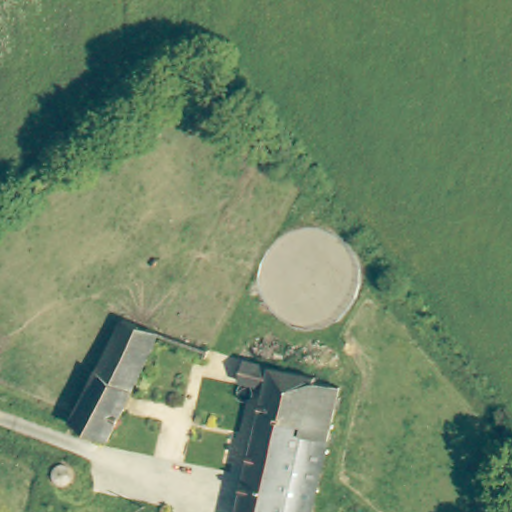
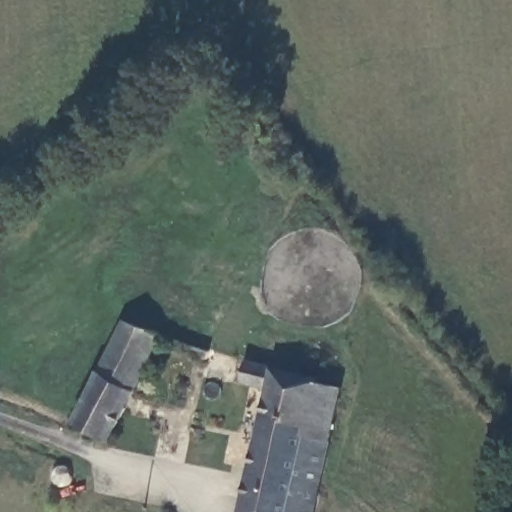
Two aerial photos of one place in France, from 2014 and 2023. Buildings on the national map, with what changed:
unchanged [(161,338),(104,445),(66,427),(120,323),(161,338)]
unchanged [(317,377),(316,382),(337,387),(307,512),(236,512),(263,387),(237,382),(242,359),(317,377)]
unchanged [(56,482),(53,482),(50,481),(48,478),(46,476),(45,473),(45,470),(46,467),(48,465),(51,463),(54,462),(57,462),(60,463),(62,466),(64,468),(65,471),(64,474),(64,477),(61,480),(59,481),(56,482)]

